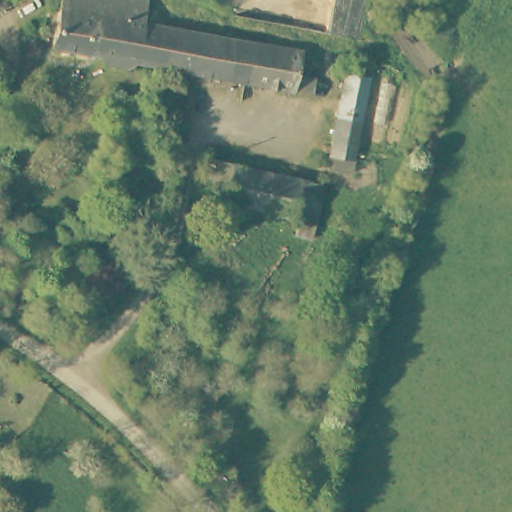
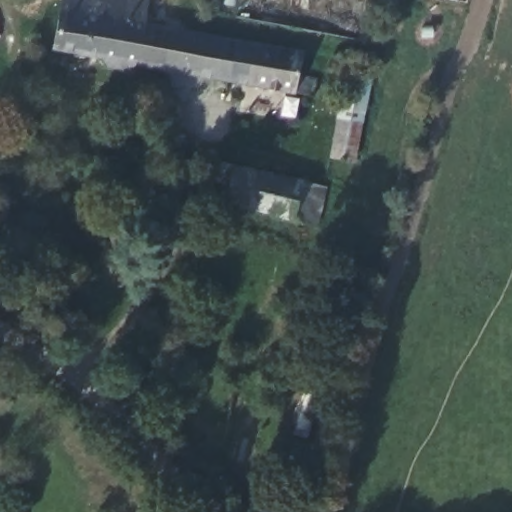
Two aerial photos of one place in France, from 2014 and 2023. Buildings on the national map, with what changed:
unchanged [(148,0),(143,23),(170,29),(162,68),(139,64),(130,72),(113,68),(110,58),(54,46),(62,0),(148,0)]
unchanged [(170,29),(305,54),(302,76),(319,79),(315,98),(170,70),(162,68),(170,29)]
unchanged [(351,166),(328,161),(344,83),(366,87),(351,166)]
unchanged [(219,158),(281,176),(282,174),(332,187),(322,227),(275,215),(276,212),(232,200),(237,184),(213,178),(219,158)]

